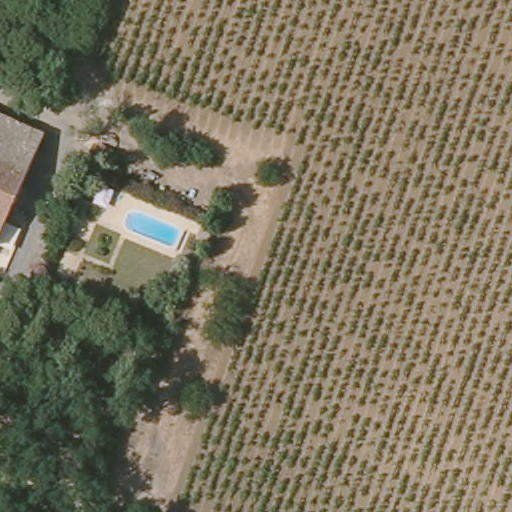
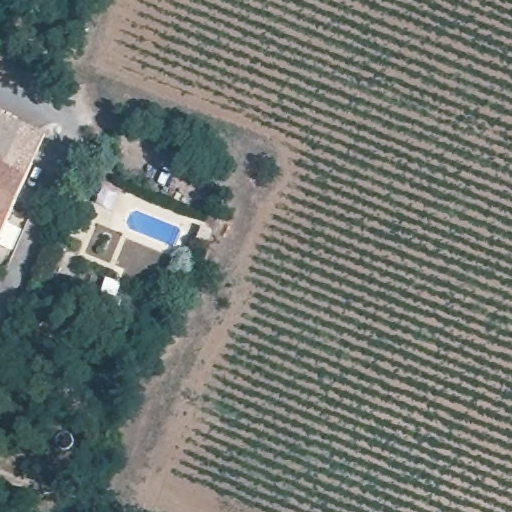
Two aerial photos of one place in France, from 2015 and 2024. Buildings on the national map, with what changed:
unchanged [(7,237),(0,235),(0,108),(49,129),(7,237)]

